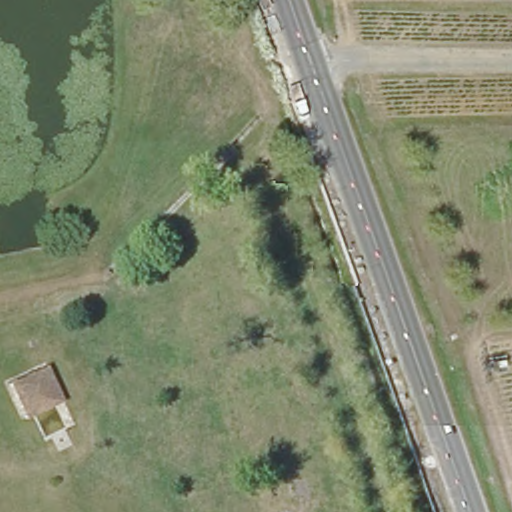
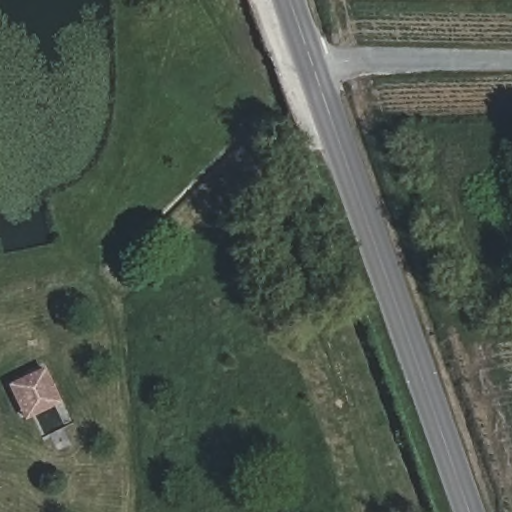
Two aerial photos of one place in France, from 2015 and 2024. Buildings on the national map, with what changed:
unchanged [(62,408),(29,422),(13,386),(45,373),(62,408)]

